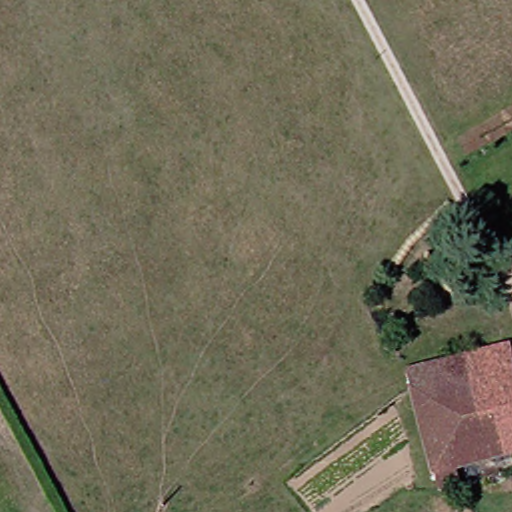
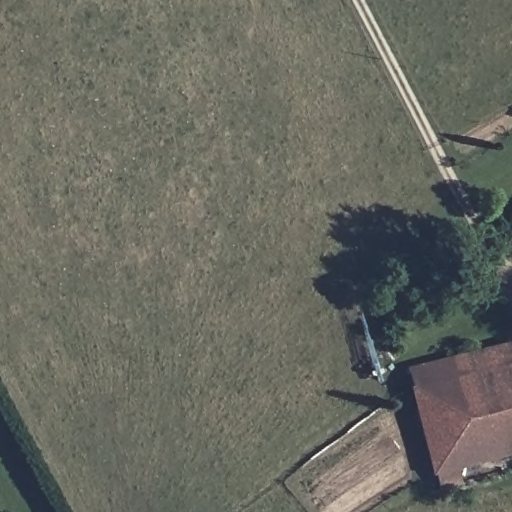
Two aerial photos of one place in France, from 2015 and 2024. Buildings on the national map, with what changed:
unchanged [(470,483),(448,489),(421,388),(416,368),(455,358),(512,343),(512,397),(501,399),(512,442),(512,458),(465,470),(470,483)]
unchanged [(512,397),(512,442),(501,399),(512,397)]

